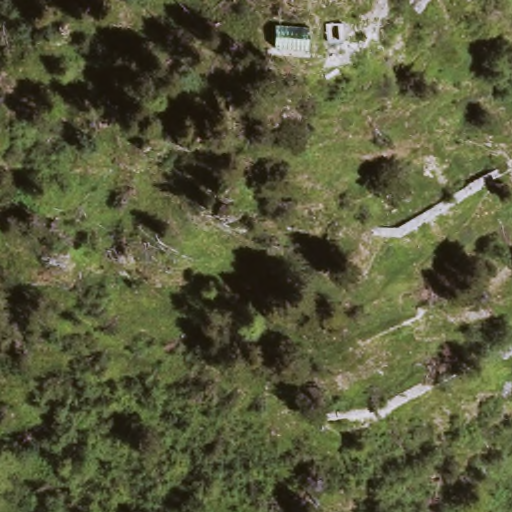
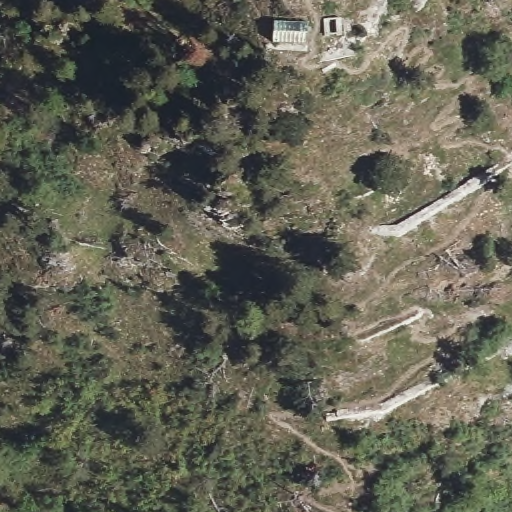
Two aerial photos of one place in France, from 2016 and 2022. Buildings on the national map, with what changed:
unchanged [(286,21),(302,23),(299,47),(267,43),(270,19),(286,21)]

